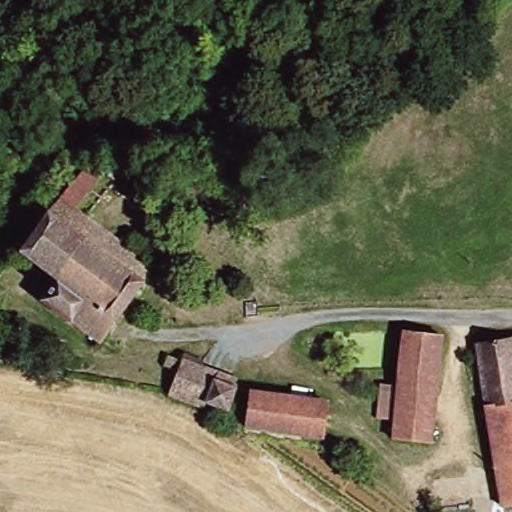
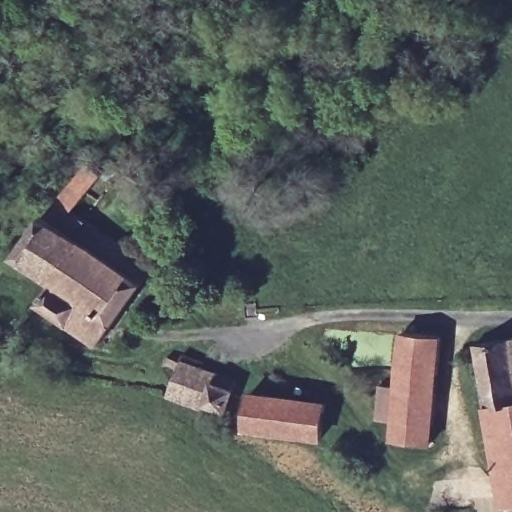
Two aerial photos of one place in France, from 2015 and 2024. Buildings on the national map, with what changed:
unchanged [(95,155),(116,170),(83,214),(159,272),(100,350),(44,307),(57,290),(16,259),(95,155)]
unchanged [(395,439),(393,423),(378,420),(380,385),(397,385),(401,333),(438,339),(433,441),(395,439)]
unchanged [(508,512),(493,444),(476,344),(512,338),(512,512),(508,512)]
unchanged [(165,362),(172,354),(234,385),(222,411),(206,404),(202,410),(169,392),(179,371),(165,362)]
unchanged [(326,408),(319,441),(248,427),(254,394),(326,408)]

